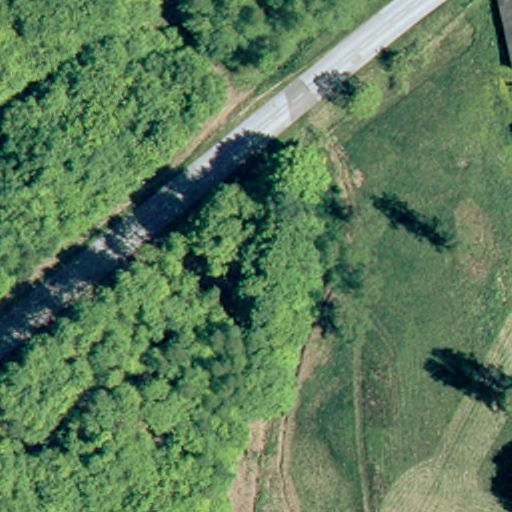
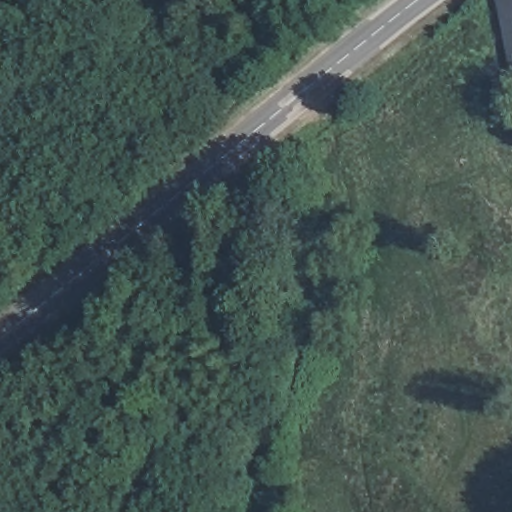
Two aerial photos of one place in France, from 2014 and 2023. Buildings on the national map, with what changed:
unchanged [(507,0),(512,0),(512,27),(507,0)]

